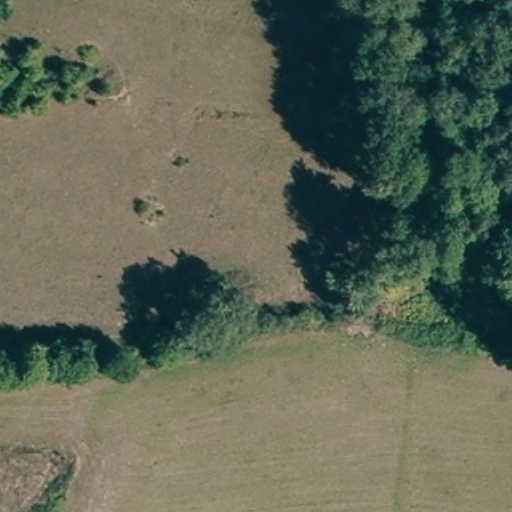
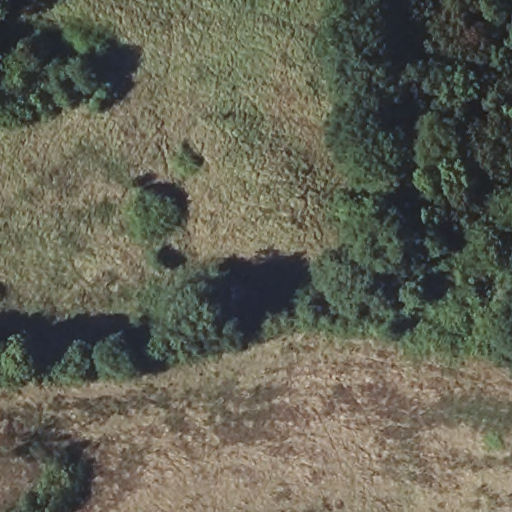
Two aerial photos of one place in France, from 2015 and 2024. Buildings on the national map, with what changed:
[]

